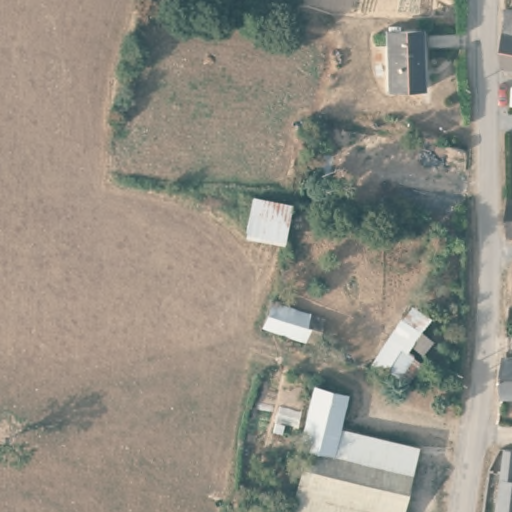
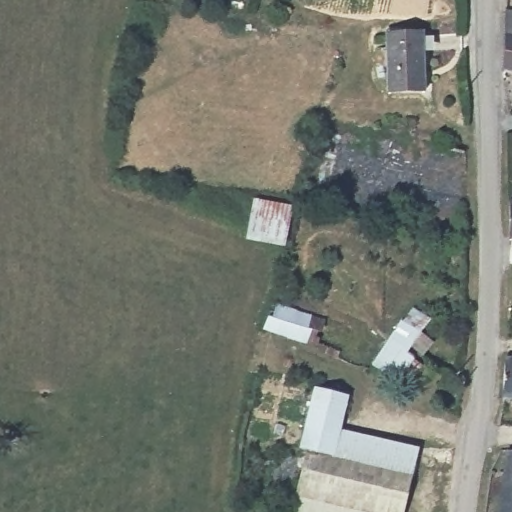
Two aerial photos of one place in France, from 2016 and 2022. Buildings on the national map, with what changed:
unchanged [(507,67),(507,6),(512,7),(512,68),(507,67)]
unchanged [(422,30),(422,90),(387,90),(385,29),(422,30)]
unchanged [(464,165),(442,160),(445,146),(466,150),(464,165)]
unchanged [(261,325),(270,296),(350,319),(345,340),(342,348),(261,325)]
unchanged [(405,335),(411,329),(428,312),(457,341),(435,362),(407,337),(405,335)]
unchanged [(403,341),(406,344),(403,347),(416,362),(406,376),(386,362),(383,365),(367,355),(395,317),(411,329),(405,335),(407,337),(403,341)]
unchanged [(504,394),(507,355),(512,356),(512,394),(504,394)]
unchanged [(346,393),(339,429),(417,448),(403,512),(290,512),(316,386),(346,393)]
unchanged [(507,450),(512,451),(512,512),(487,512),(491,471),(505,472),(507,450)]

